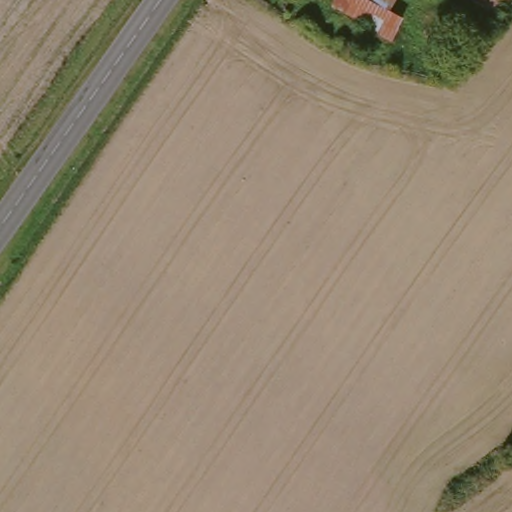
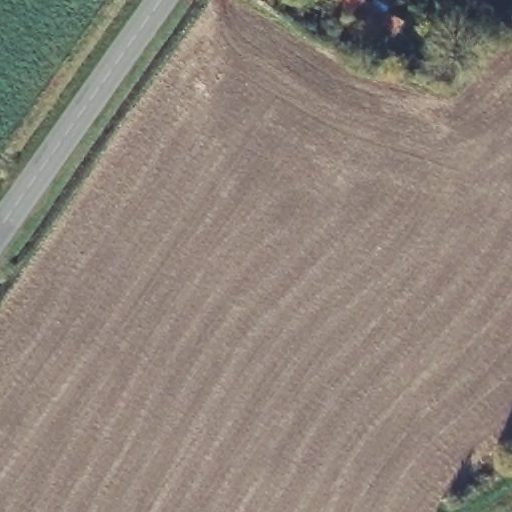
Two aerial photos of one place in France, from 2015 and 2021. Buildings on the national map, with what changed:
unchanged [(403,27),(390,48),(328,8),(333,0),(387,0),(397,7),(387,18),(403,27)]
unchanged [(467,0),(512,0),(512,5),(501,23),(467,0)]

